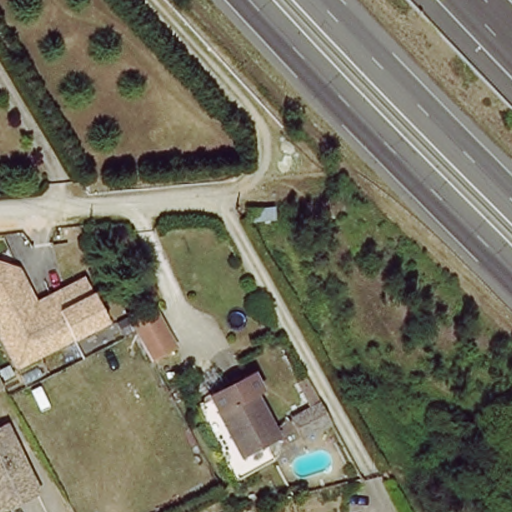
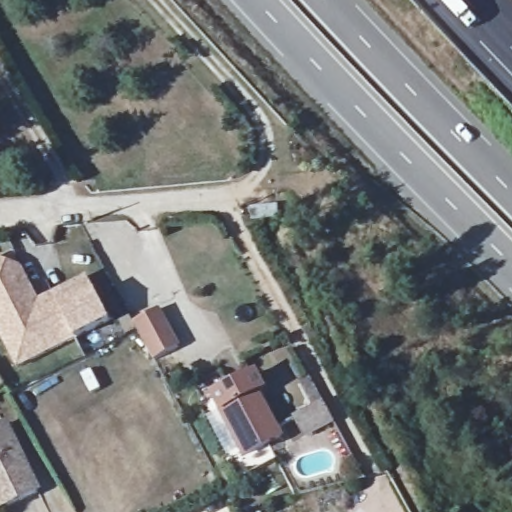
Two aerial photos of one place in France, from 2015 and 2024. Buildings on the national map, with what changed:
unchanged [(39,300),(86,278),(95,295),(111,323),(75,340),(19,370),(0,332),(0,261),(21,267),(39,300)]
unchanged [(132,324),(161,309),(183,347),(155,363),(132,324)]
unchanged [(259,383),(281,427),(239,447),(216,402),(259,383)]
unchanged [(328,420),(303,433),(294,415),(319,402),(328,420)]
unchanged [(39,491),(7,507),(0,510),(0,429),(7,426),(39,491)]

